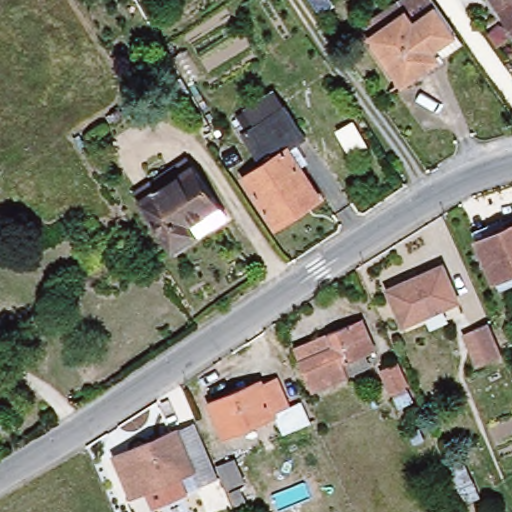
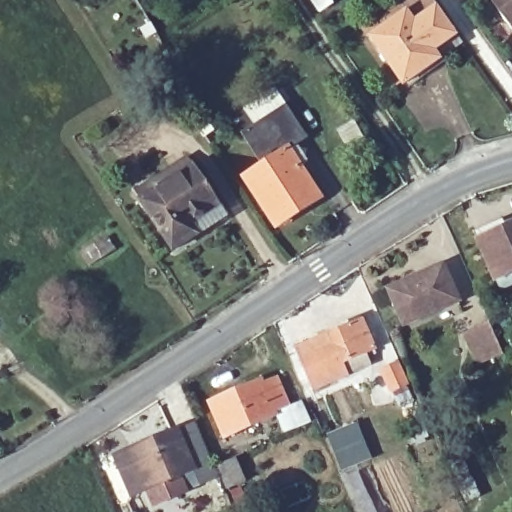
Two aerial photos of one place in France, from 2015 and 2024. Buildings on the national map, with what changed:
unchanged [(401,0),(429,0),(437,11),(420,23),(409,10),(372,34),(366,24),(401,0)]
unchanged [(496,0),(512,0),(512,3),(503,9),(496,0)]
unchanged [(503,9),(512,3),(512,23),(503,9)]
unchanged [(407,83),(372,34),(409,10),(420,23),(437,11),(461,44),(407,83)]
unchanged [(248,180),(269,165),(249,134),(284,108),(309,140),(289,153),(323,199),(280,230),(248,180)]
unchanged [(208,224),(214,230),(177,254),(141,200),(136,192),(189,156),(194,166),(224,213),(208,224)]
unchanged [(495,287),(480,245),(474,229),(501,219),(508,234),(512,232),(512,279),(495,287)]
unchanged [(104,240),(111,256),(86,270),(78,255),(104,240)]
unchanged [(399,327),(386,290),(444,272),(456,309),(399,327)]
unchanged [(374,352),(342,364),(347,378),(309,393),(299,363),(293,346),(328,334),(362,320),(374,352)]
unchanged [(501,374),(486,381),(471,343),(486,337),(501,374)]
unchanged [(402,389),(388,393),(382,374),(394,369),(402,389)]
unchanged [(299,429),(284,436),(274,419),(224,441),(210,406),(259,384),(261,389),(279,379),(299,429)]
new [(356,422),(373,459),(343,473),(327,436),(356,422)]
unchanged [(224,491),(217,476),(202,484),(197,472),(129,497),(113,456),(180,429),(194,426),(214,470),(236,462),(244,481),(224,491)]

